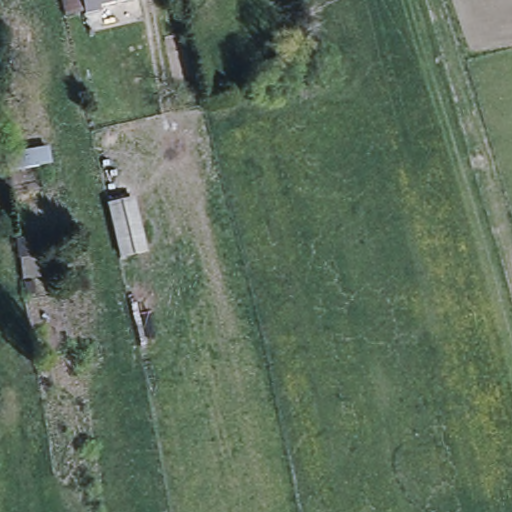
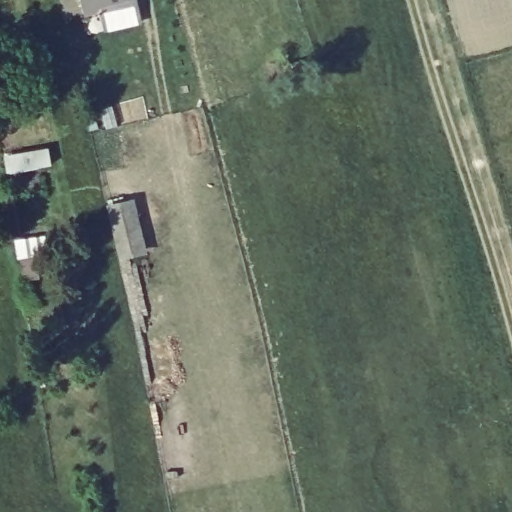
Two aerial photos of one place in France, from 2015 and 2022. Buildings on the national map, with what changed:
unchanged [(85,15),(81,0),(130,0),(108,5),(99,8),(100,12),(85,15)]
unchanged [(33,151),(47,148),(52,167),(8,177),(3,158),(33,151)]
unchanged [(104,205),(133,199),(146,257),(118,264),(104,205)]
unchanged [(22,283),(15,240),(29,238),(45,235),(48,259),(38,260),(41,279),(22,283)]

